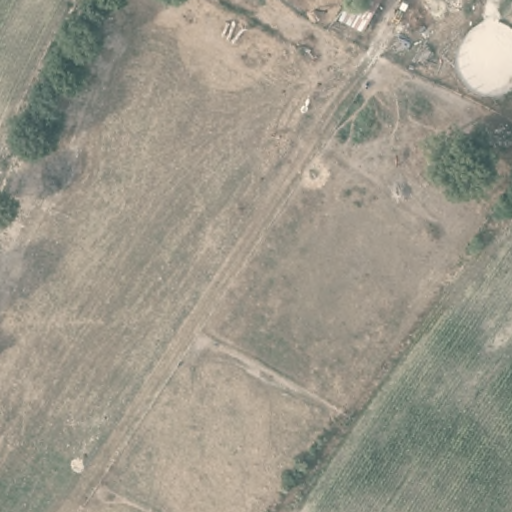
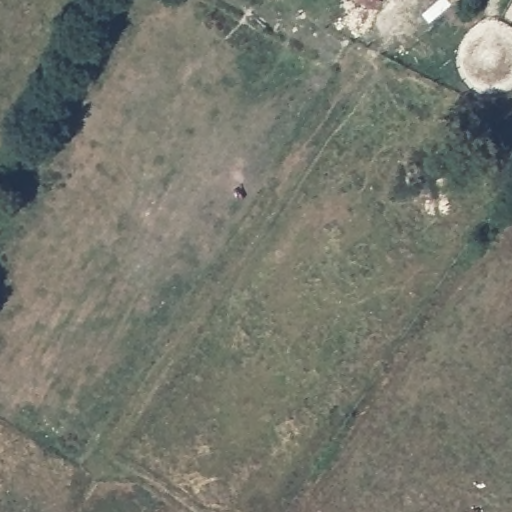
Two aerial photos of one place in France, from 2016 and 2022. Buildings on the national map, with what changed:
unchanged [(369,0),(379,0),(377,4),(369,0)]

